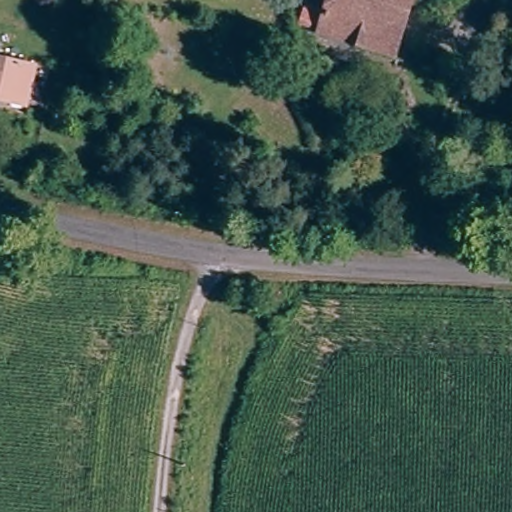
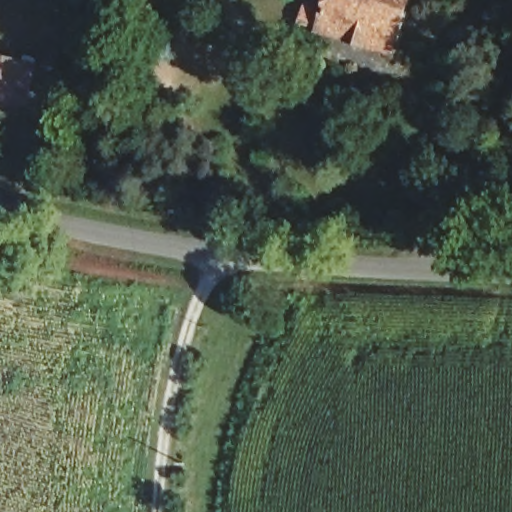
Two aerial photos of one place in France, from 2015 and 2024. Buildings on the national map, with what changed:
unchanged [(317,29),(326,0),(410,0),(395,54),(317,29)]
unchanged [(0,93),(0,52),(35,59),(30,88),(29,98),(0,93)]
unchanged [(167,353),(167,367),(157,367),(158,352),(167,353)]

